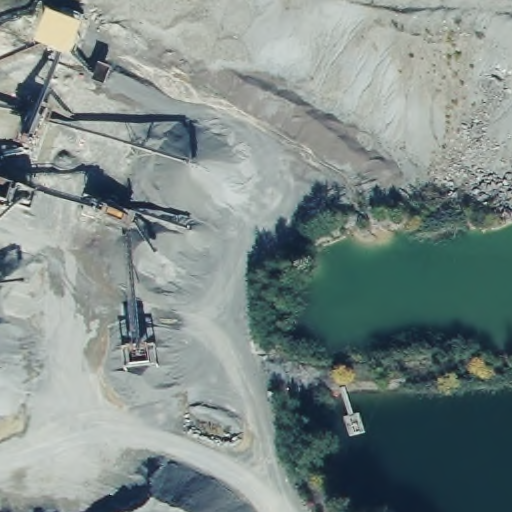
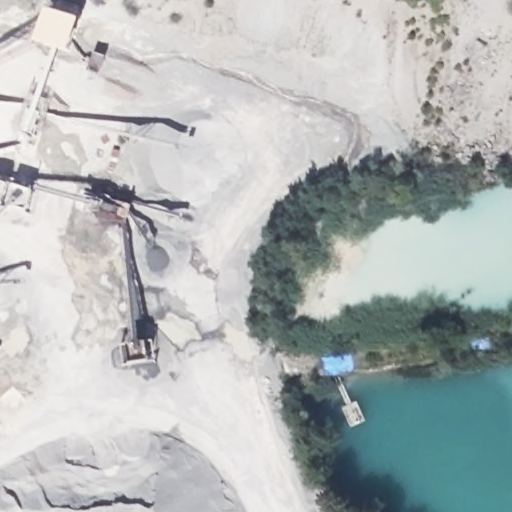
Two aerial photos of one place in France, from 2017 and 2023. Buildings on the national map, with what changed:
unchanged [(76,59),(38,49),(50,11),(84,22),(76,59)]

